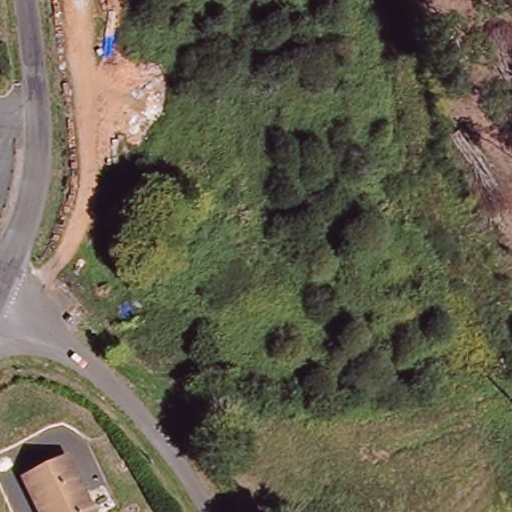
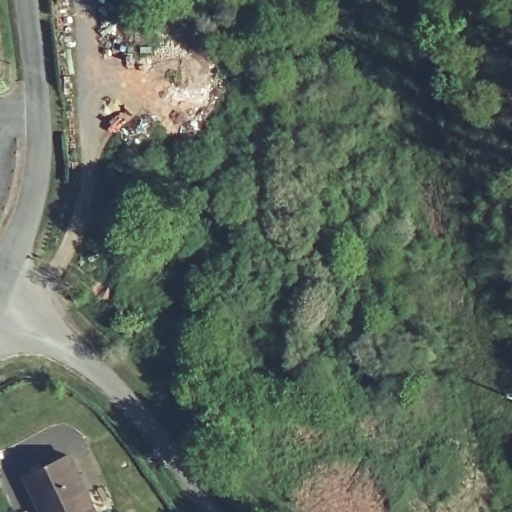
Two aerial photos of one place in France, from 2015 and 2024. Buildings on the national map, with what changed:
unchanged [(4,150),(0,150),(0,137),(1,137),(4,150)]
unchanged [(69,450),(101,512),(47,512),(44,506),(27,472),(69,450)]

